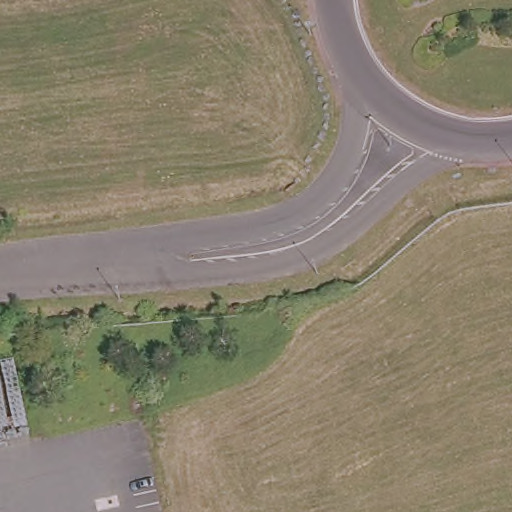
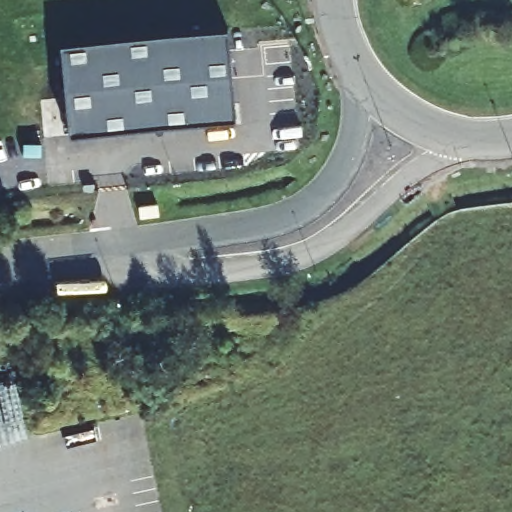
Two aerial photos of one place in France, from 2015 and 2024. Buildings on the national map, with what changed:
new [(61,44),(228,28),(236,120),(69,136),(61,44)]
new [(159,215),(140,217),(139,206),(158,203),(159,215)]

